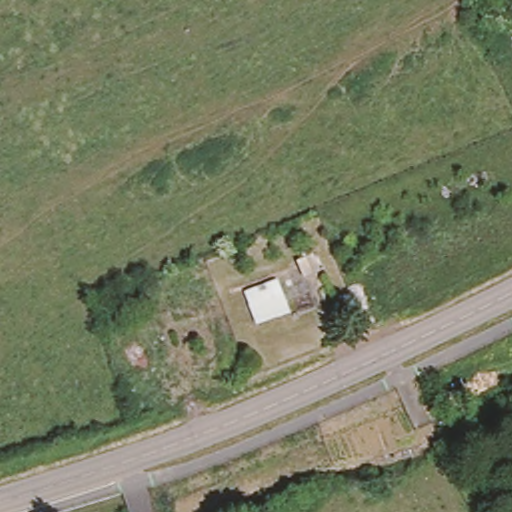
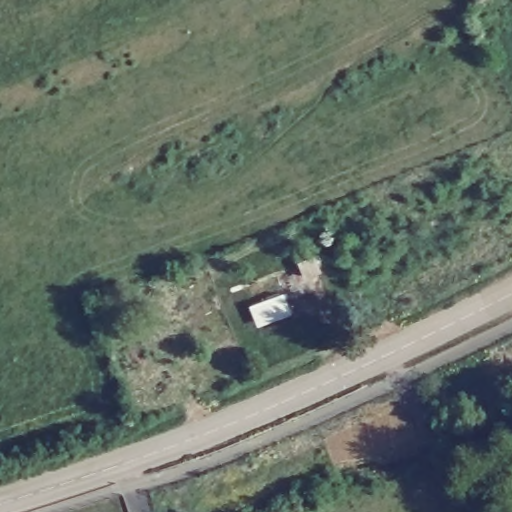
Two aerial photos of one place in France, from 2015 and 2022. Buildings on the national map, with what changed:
unchanged [(303,286),(290,261),(313,254),(322,275),(303,286)]

